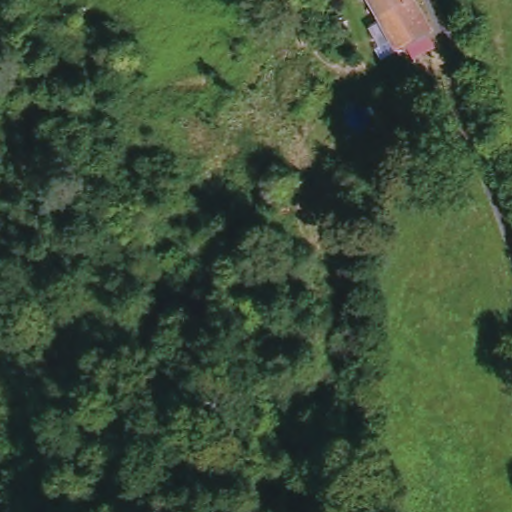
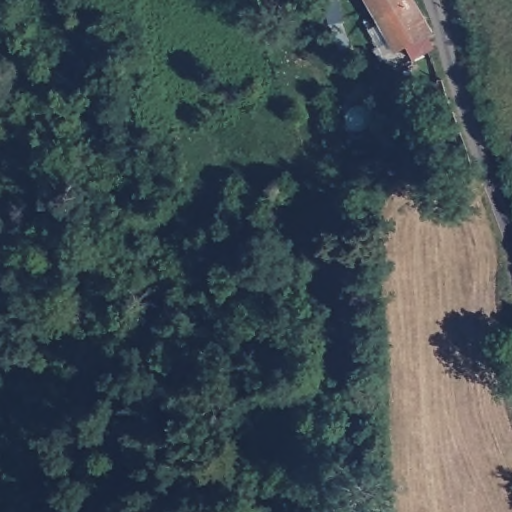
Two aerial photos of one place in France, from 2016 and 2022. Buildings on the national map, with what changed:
unchanged [(438,31),(427,38),(436,56),(410,72),(368,0),(421,0),(438,31)]

